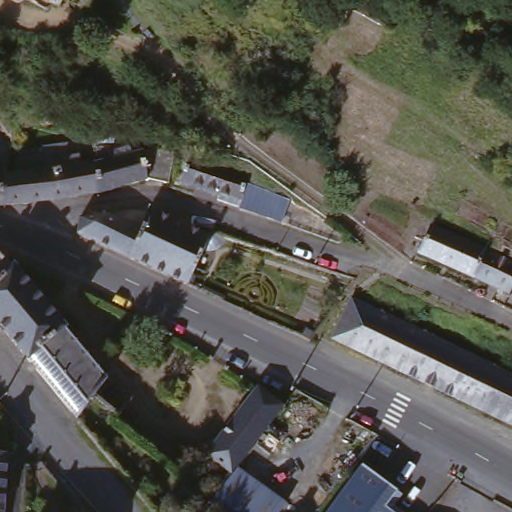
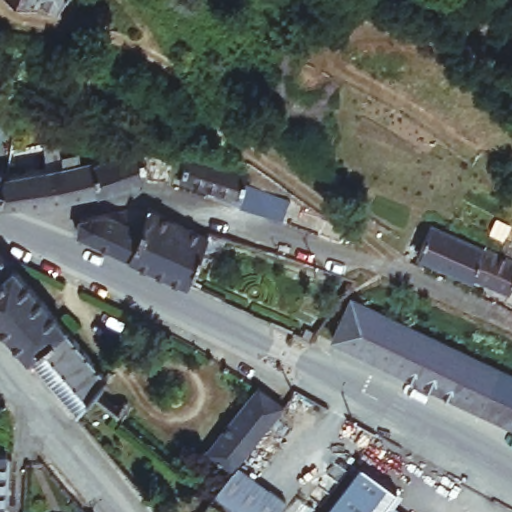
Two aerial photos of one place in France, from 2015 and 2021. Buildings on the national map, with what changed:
unchanged [(29,2),(25,8),(17,3),(6,4),(0,0),(52,0),(46,11),(29,2)]
unchanged [(79,171),(87,169),(87,197),(0,208),(0,155),(75,148),(79,171)]
unchanged [(185,151),(247,169),(244,181),(287,197),(276,222),(235,206),(174,186),(185,151)]
unchanged [(139,159),(165,159),(159,188),(148,184),(88,198),(87,197),(87,169),(139,159)]
unchanged [(150,221),(127,261),(77,238),(84,222),(92,223),(120,221),(140,218),(150,221)]
unchanged [(127,261),(150,221),(152,218),(208,243),(210,240),(220,243),(222,245),(224,249),(223,252),(222,256),(220,258),(215,260),(210,259),(207,258),(205,255),(204,253),(204,250),(184,287),(127,261)]
unchanged [(427,229),(478,254),(465,284),(412,259),(427,229)]
unchanged [(478,254),(512,271),(512,293),(506,304),(465,284),(478,254)]
unchanged [(0,276),(0,258),(9,268),(0,276)]
unchanged [(26,366),(0,336),(0,276),(9,268),(103,380),(87,398),(72,418),(26,366)]
unchanged [(512,378),(512,427),(314,336),(333,295),(512,378)]
unchanged [(204,459),(252,390),(277,406),(232,469),(227,477),(204,459)]
unchanged [(3,433),(5,456),(2,512),(0,512),(0,423),(2,422),(3,433)]
unchanged [(277,512),(204,512),(203,512),(215,495),(227,477),(232,469),(282,504),(277,512)]
unchanged [(393,493),(379,512),(330,512),(360,469),(393,493)]

